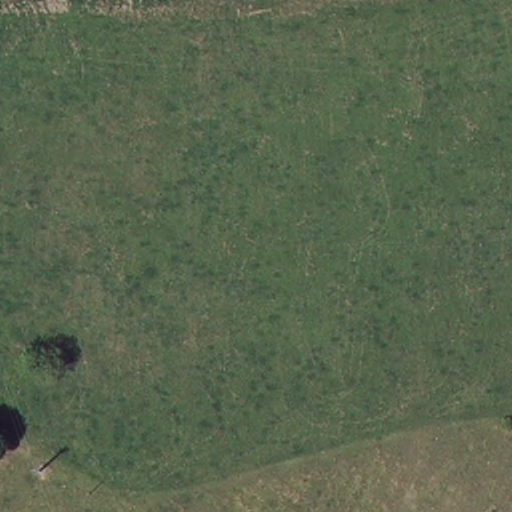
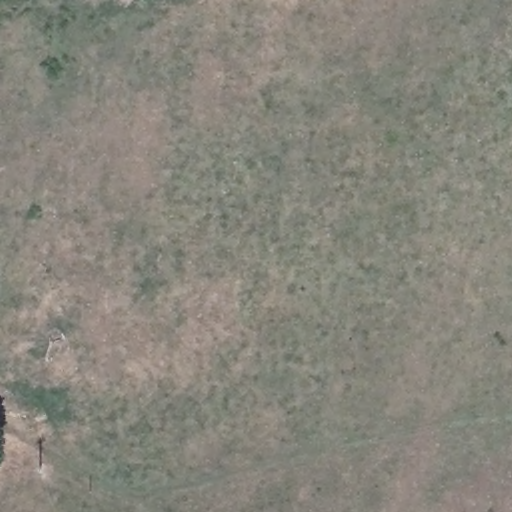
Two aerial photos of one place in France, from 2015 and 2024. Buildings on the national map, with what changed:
[]

